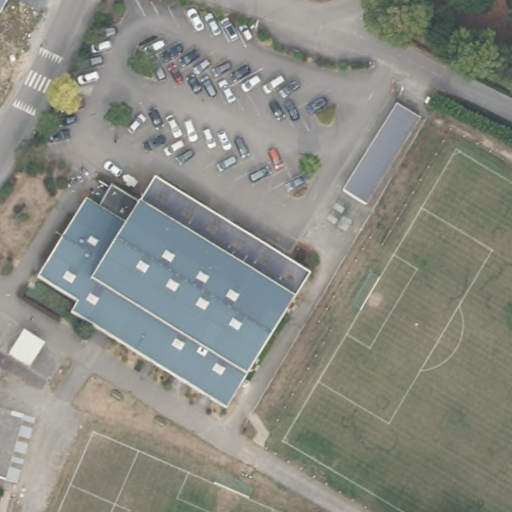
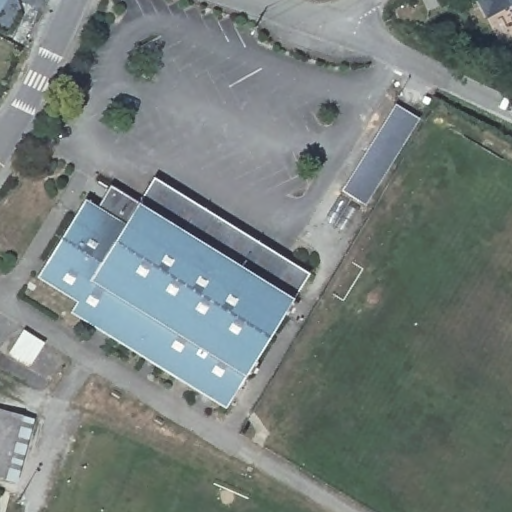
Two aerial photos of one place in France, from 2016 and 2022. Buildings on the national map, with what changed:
unchanged [(7,0),(0,11),(0,0),(7,0)]
new [(479,0),(512,0),(512,9),(510,5),(486,18),(479,0)]
unchanged [(394,105),(416,119),(364,205),(341,192),(394,105)]
unchanged [(305,274),(223,411),(66,314),(73,303),(33,279),(81,200),(101,212),(111,196),(131,209),(149,178),(305,274)]
unchanged [(0,481),(0,414),(21,420),(33,424),(15,485),(2,481),(0,481)]
unchanged [(1,509),(0,512),(0,508),(1,509)]

